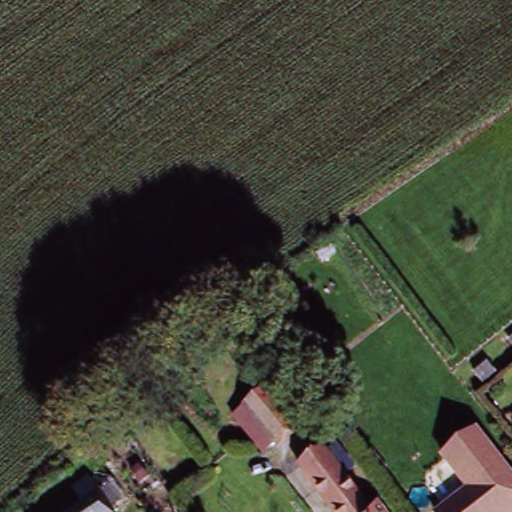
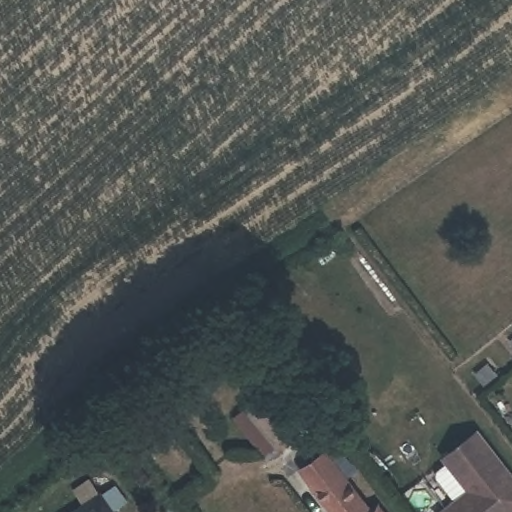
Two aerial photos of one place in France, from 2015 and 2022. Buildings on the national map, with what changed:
unchanged [(231,417),(244,407),(263,389),(294,429),(275,445),(261,456),(231,417)]
unchanged [(152,443),(144,432),(163,417),(170,428),(152,443)]
unchanged [(324,452),(345,433),(393,492),(371,510),(324,452)]
unchanged [(468,496),(442,463),(476,436),(512,481),(512,512),(448,512),(468,496)]
unchanged [(324,452),(371,510),(368,512),(326,512),(295,475),(324,452)]
unchanged [(81,501),(91,512),(67,512),(81,501)]
unchanged [(371,510),(374,512),(368,512),(371,510)]

